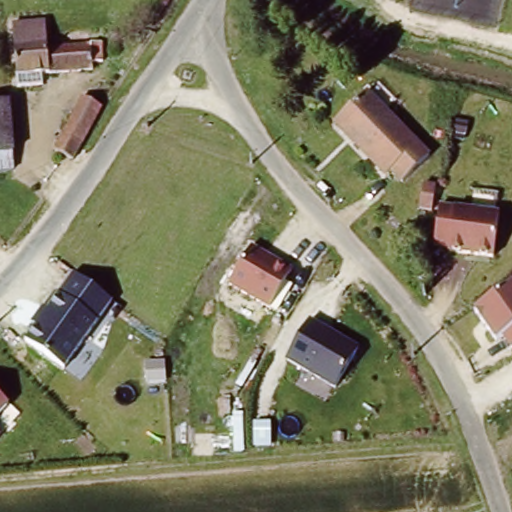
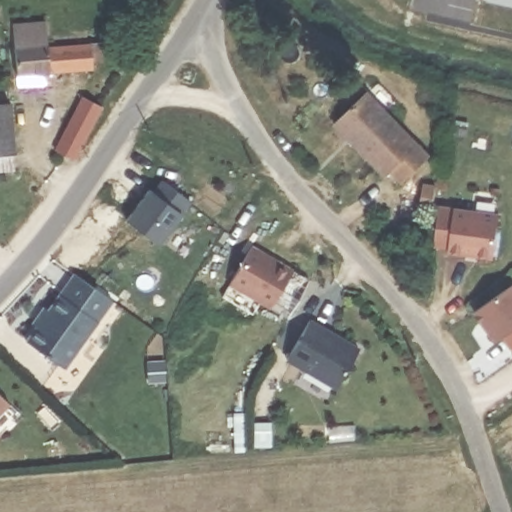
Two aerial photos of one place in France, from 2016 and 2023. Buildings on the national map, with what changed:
new [(486,0),(512,0),(512,5),(486,0)]
unchanged [(88,46),(101,46),(102,69),(99,69),(99,80),(85,80),(84,70),(33,72),(34,85),(13,86),(12,46),(10,26),(42,25),(42,36),(87,33),(88,46)]
unchanged [(431,154),(401,181),(390,168),(386,172),(340,119),(374,89),(431,154)]
unchanged [(57,155),(85,98),(104,107),(75,164),(57,155)]
unchanged [(0,99),(8,99),(9,149),(8,168),(0,168),(0,99)]
new [(183,213),(160,244),(127,220),(149,189),(157,193),(161,179),(192,201),(183,213)]
unchanged [(455,205),(500,210),(494,257),(448,251),(449,245),(432,243),(439,201),(455,205)]
unchanged [(295,266),(270,308),(229,283),(252,242),(295,266)]
unchanged [(49,308),(61,289),(74,273),(114,300),(97,320),(65,368),(25,339),(36,323),(32,320),(43,303),(49,308)]
unchanged [(512,280),(512,344),(508,332),(495,340),(472,307),(510,277),(512,280)]
unchanged [(360,345),(335,387),(285,358),(310,316),(360,345)]
unchanged [(0,412),(0,394),(9,403),(0,412)]

